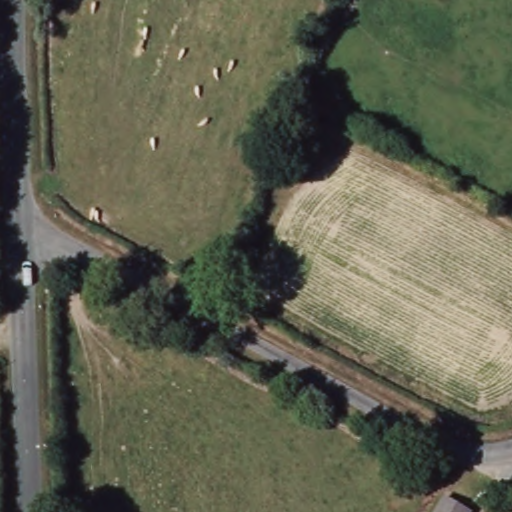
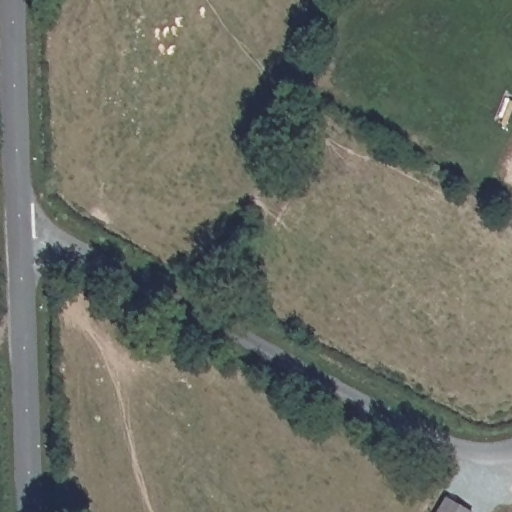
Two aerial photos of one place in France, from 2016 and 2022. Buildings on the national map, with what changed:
unchanged [(472,511),(471,512),(438,512),(447,497),(472,511)]

